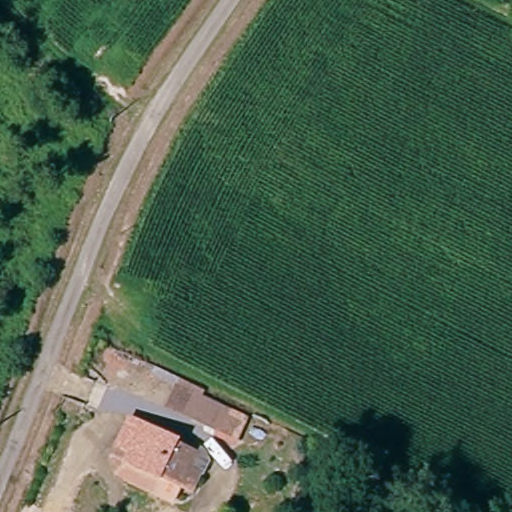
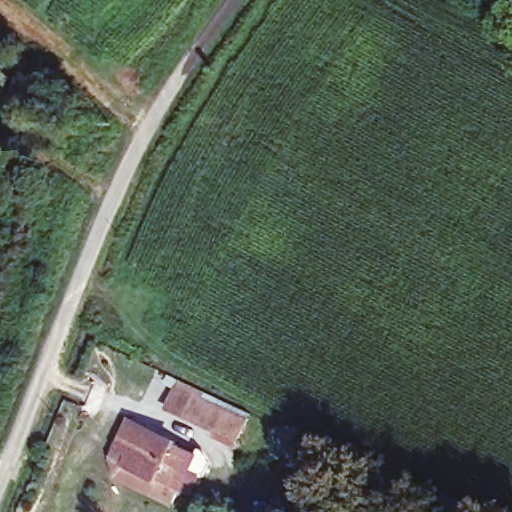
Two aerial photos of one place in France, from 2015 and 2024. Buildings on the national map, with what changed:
unchanged [(219,433),(163,403),(172,385),(228,414),(219,433)]
unchanged [(190,493),(177,487),(156,477),(154,481),(122,463),(128,452),(115,446),(129,420),(142,427),(172,442),(171,445),(192,457),(186,470),(198,477),(190,493)]

